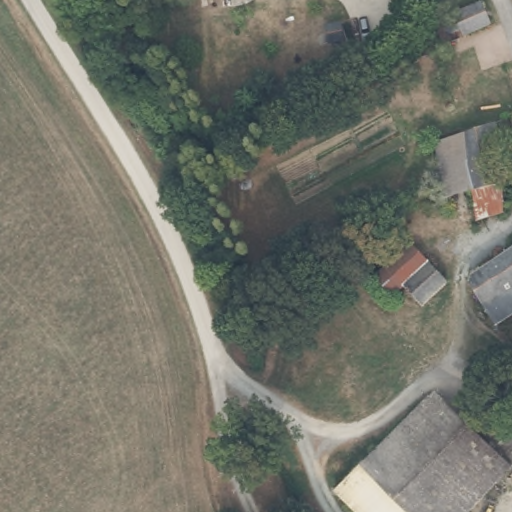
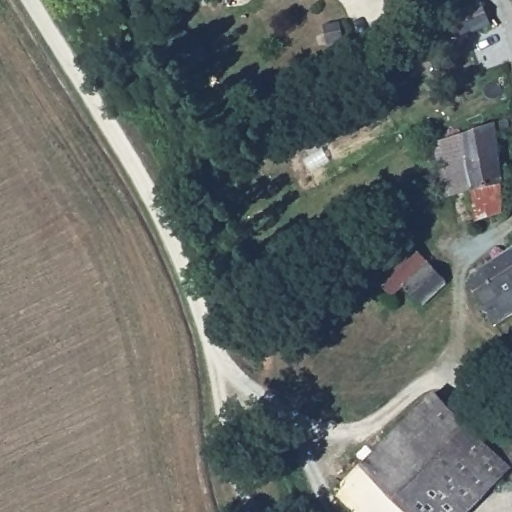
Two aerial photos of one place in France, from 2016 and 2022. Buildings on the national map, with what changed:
unchanged [(419,0),(440,0),(440,5),(419,0)]
unchanged [(456,20),(455,16),(482,0),(487,0),(494,13),(495,20),(472,33),(465,26),(453,32),(458,39),(447,46),(426,18),(439,11),(449,26),(456,20)]
unchanged [(445,196),(442,180),(435,142),(507,118),(510,128),(496,135),(502,186),(503,202),(473,220),(469,192),(445,196)]
unchanged [(374,267),(410,236),(429,256),(390,289),(374,267)]
unchanged [(512,242),(512,305),(495,315),(474,285),(465,272),(474,266),(512,242)]
unchanged [(446,273),(420,298),(405,282),(432,260),(446,273)]
unchanged [(512,381),(512,383),(511,381),(512,381)]
unchanged [(364,463),(366,461),(441,391),(476,426),(490,414),(512,437),(512,470),(471,512),(392,512),(364,463)]
unchanged [(364,463),(392,512),(347,512),(332,498),(364,463)]

